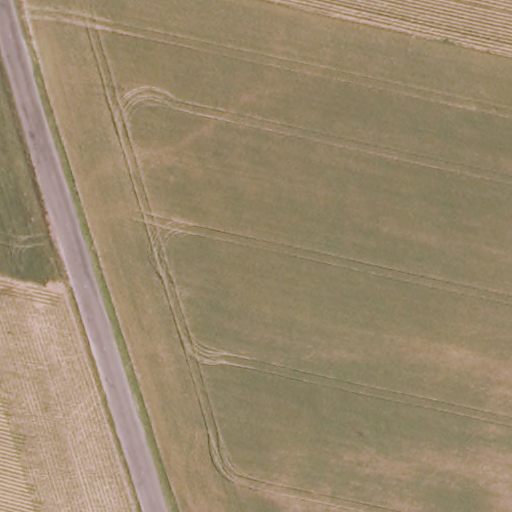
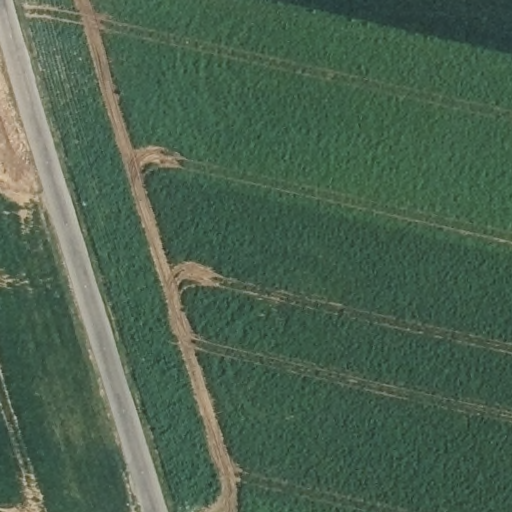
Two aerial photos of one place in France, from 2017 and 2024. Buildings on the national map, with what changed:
[]

